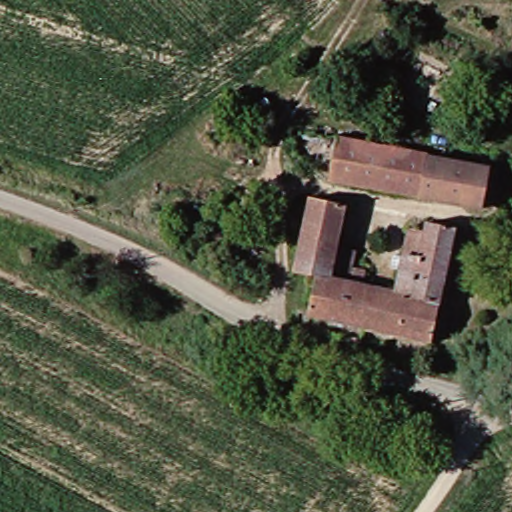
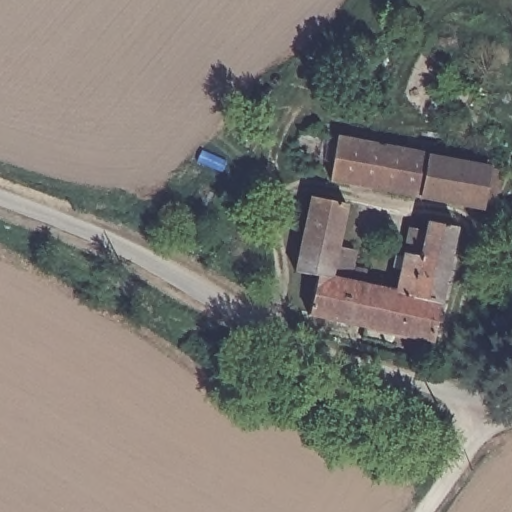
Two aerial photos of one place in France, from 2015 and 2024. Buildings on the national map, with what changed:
unchanged [(334,183),(341,139),(428,155),(421,197),(334,183)]
unchanged [(490,210),(481,209),(421,197),(428,155),(488,167),(499,169),(490,210)]
unchanged [(362,340),(364,328),(310,317),(319,276),(296,272),(315,198),(347,205),(339,249),(360,253),(356,271),(370,273),(370,283),(396,290),(400,279),(408,280),(413,257),(429,260),(438,225),(466,230),(436,343),(393,333),(390,345),(362,340)]
unchanged [(229,200),(279,219),(262,261),(234,252),(239,237),(216,229),(229,200)]

